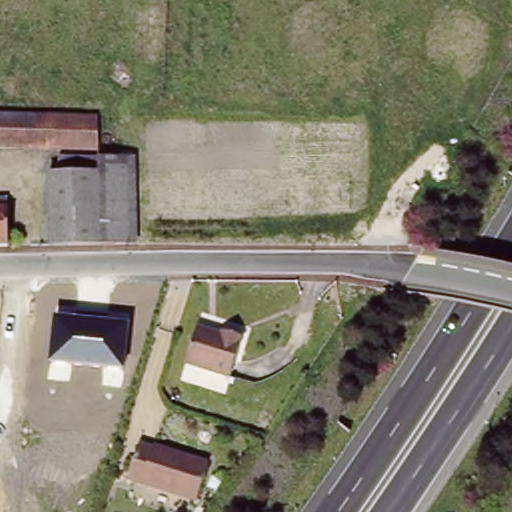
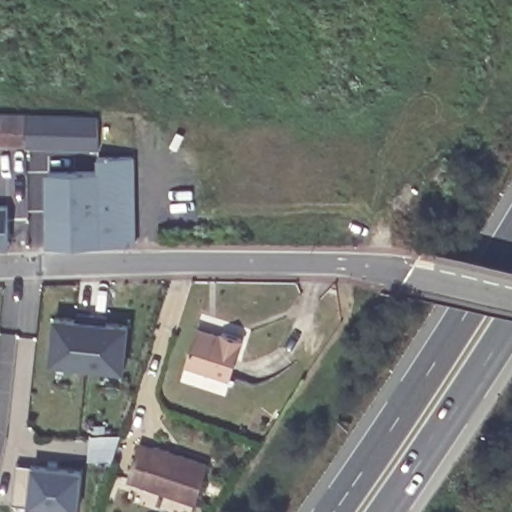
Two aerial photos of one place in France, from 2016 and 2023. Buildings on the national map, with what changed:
unchanged [(60,116),(60,117),(60,141),(66,142),(66,148),(66,149),(0,147),(0,114),(60,116)]
unchanged [(96,116),(93,149),(66,149),(66,148),(66,142),(60,141),(60,117),(60,116),(96,116)]
unchanged [(131,198),(131,240),(46,241),(44,168),(94,168),(93,153),(130,153),(131,198)]
unchanged [(8,206),(9,247),(0,247),(0,207),(8,206)]
unchanged [(54,315),(131,323),(124,372),(48,364),(54,315)]
unchanged [(198,325),(218,331),(218,334),(222,335),(224,330),(243,335),(230,381),(186,368),(198,325)]
unchanged [(138,443),(153,448),(154,445),(172,452),(171,454),(178,457),(179,454),(209,465),(196,505),(125,480),(138,443)]
new [(80,472),(76,512),(50,512),(50,509),(10,504),(15,465),(80,472)]

